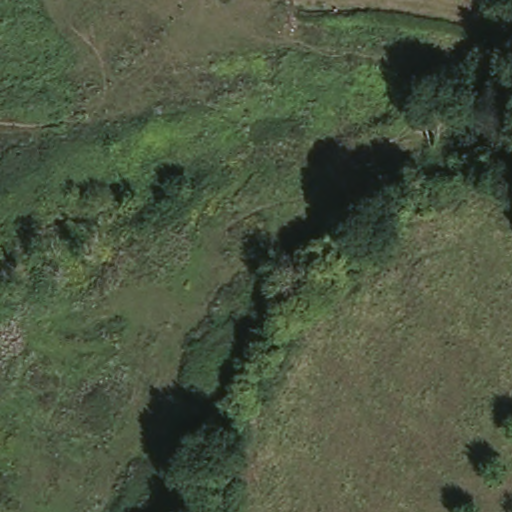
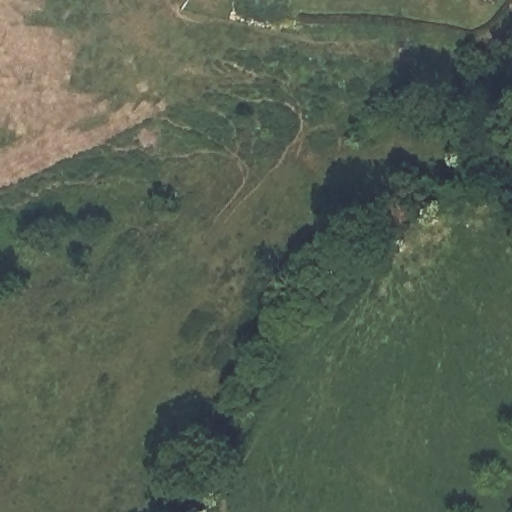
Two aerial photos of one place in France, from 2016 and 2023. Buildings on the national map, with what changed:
[]

